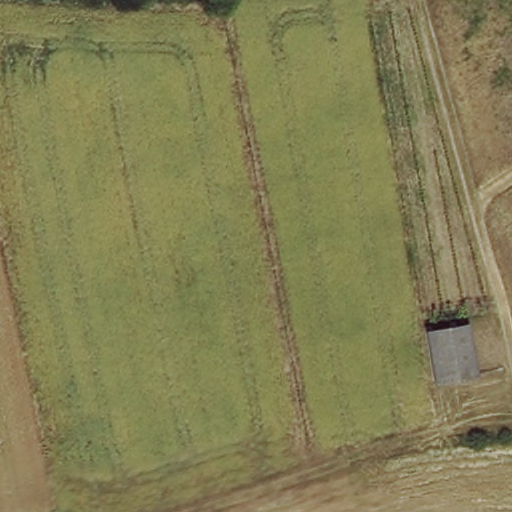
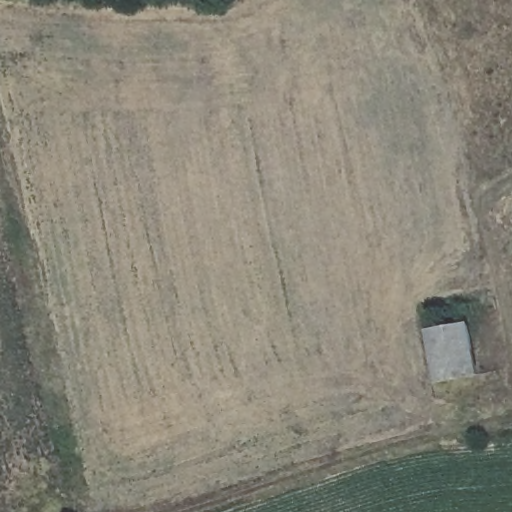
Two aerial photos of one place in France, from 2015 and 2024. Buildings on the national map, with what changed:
unchanged [(463,322),(470,372),(433,378),(425,330),(463,322)]

